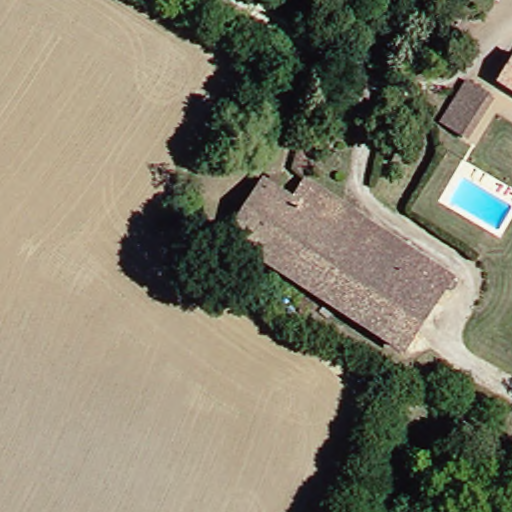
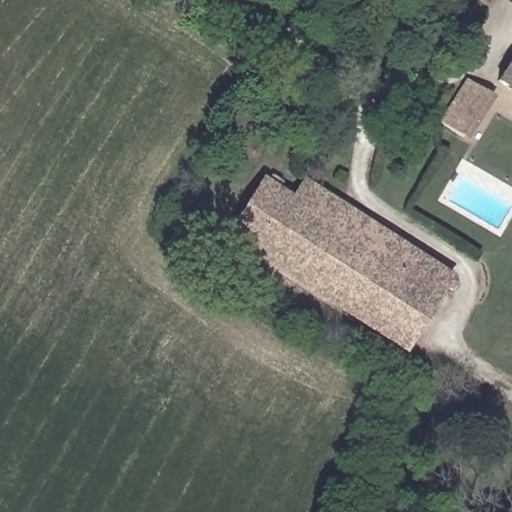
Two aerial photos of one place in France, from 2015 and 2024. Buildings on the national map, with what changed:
unchanged [(499,78),(512,58),(512,86),(499,78)]
unchanged [(462,145),(450,138),(452,126),(447,121),(474,77),(496,93),(462,145)]
unchanged [(402,352),(232,236),(275,177),(285,183),(278,192),(296,205),(308,186),(447,280),(402,352)]

